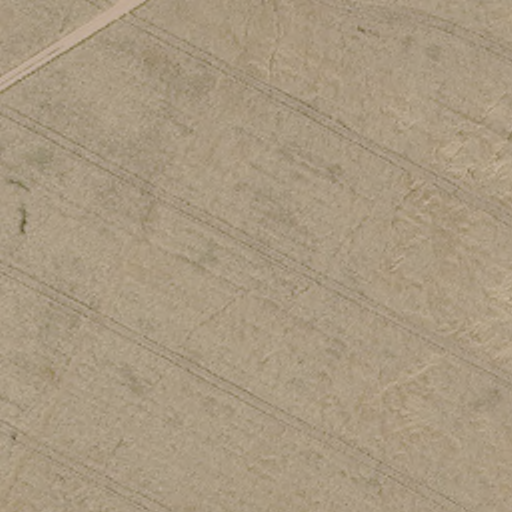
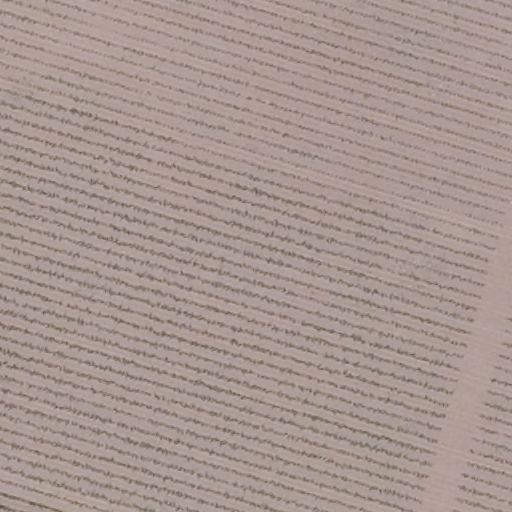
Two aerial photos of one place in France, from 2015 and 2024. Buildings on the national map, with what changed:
[]

